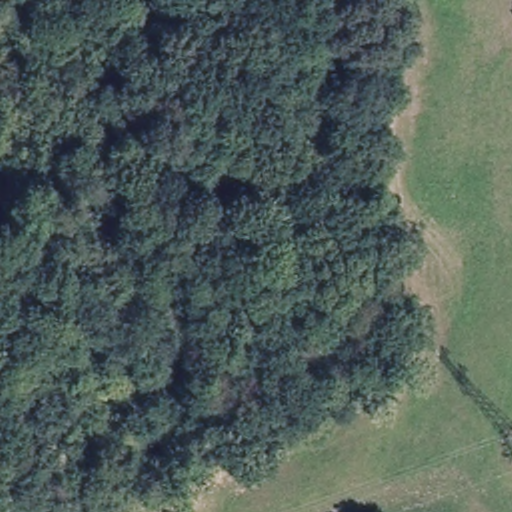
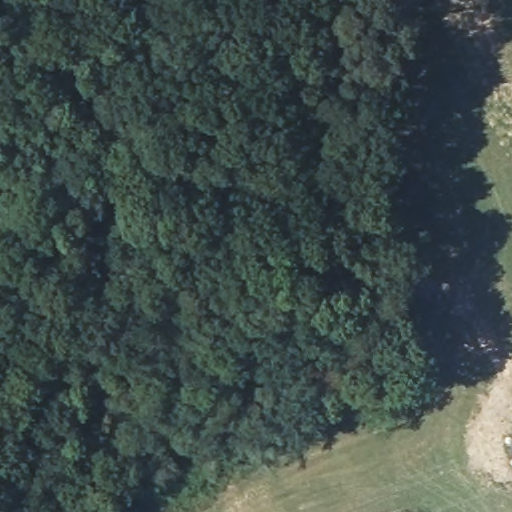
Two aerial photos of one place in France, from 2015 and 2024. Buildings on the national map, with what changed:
[]

